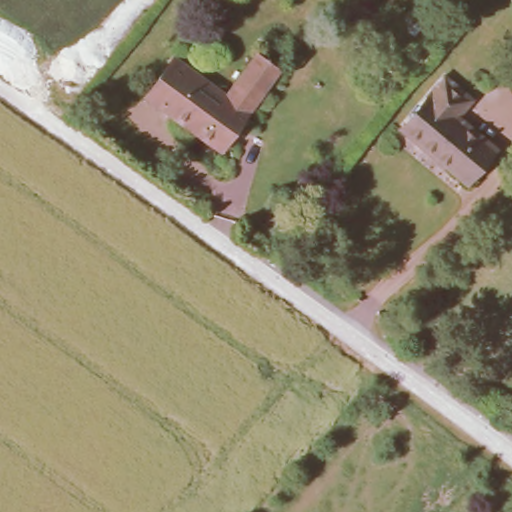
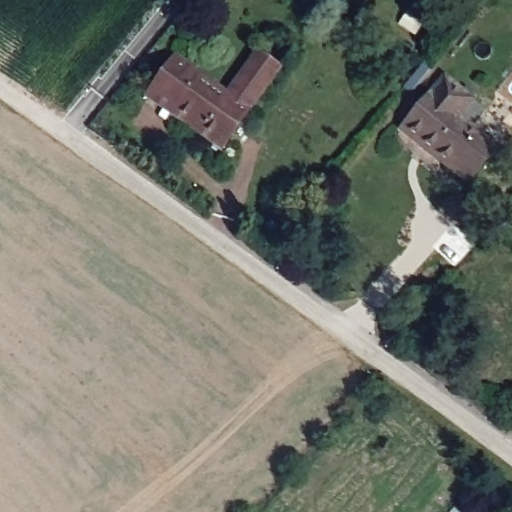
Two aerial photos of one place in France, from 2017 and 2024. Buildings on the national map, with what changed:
unchanged [(215,152),(168,117),(176,106),(149,86),(171,57),(223,96),(252,57),(274,72),(215,152)]
unchanged [(440,71),(464,92),(452,107),(489,140),(460,174),(397,121),(440,71)]

